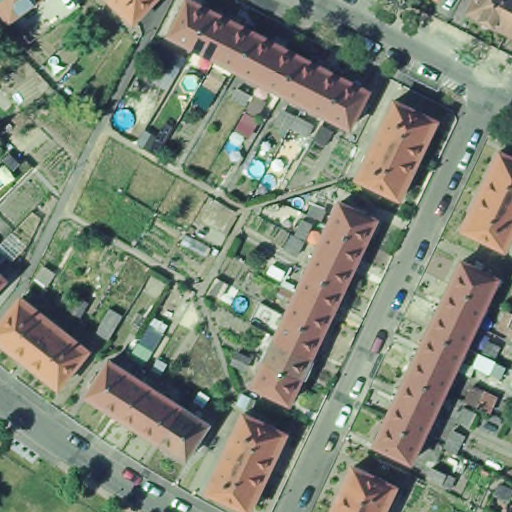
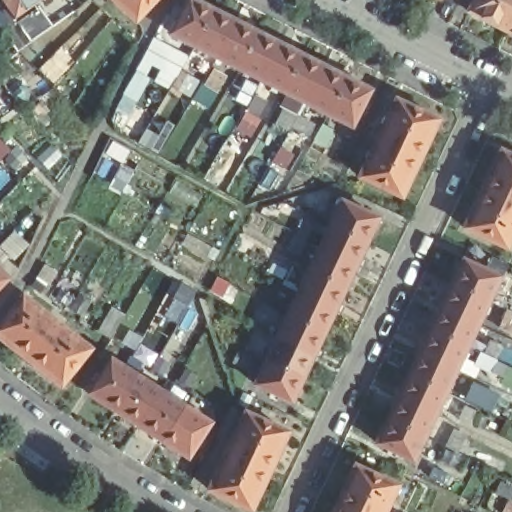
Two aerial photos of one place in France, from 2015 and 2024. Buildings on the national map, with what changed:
unchanged [(0,17),(0,0),(30,0),(2,19),(0,17)]
unchanged [(109,0),(150,0),(131,20),(109,0)]
unchanged [(464,17),(472,0),(512,0),(512,17),(502,36),(464,17)]
unchanged [(166,39),(185,3),(208,15),(191,51),(166,39)]
unchanged [(279,95),(257,84),(234,73),(213,62),(191,51),(208,15),(231,26),(253,37),(275,48),(297,59),(319,70),(301,107),(279,95)]
unchanged [(512,17),(512,42),(502,36),(512,17)]
unchanged [(6,22),(21,42),(7,52),(0,42),(0,27),(6,22)]
unchanged [(319,70),(342,82),(324,118),(301,107),(319,70)]
unchanged [(342,82),(365,93),(347,129),(324,118),(342,82)]
unchanged [(438,118),(402,195),(360,176),(396,98),(438,118)]
unchanged [(512,235),(507,247),(464,227),(501,149),(512,155),(512,235)]
unchanged [(373,218),(362,241),(326,224),(336,201),(373,218)]
unchanged [(326,224),(362,241),(351,264),(314,247),(326,224)]
unchanged [(351,264),(341,286),(304,269),(314,247),(351,264)]
unchanged [(494,281),(484,305),(447,288),(458,264),(494,281)]
unchanged [(304,269),(341,286),(330,309),(294,292),(304,269)]
unchanged [(3,287),(0,290),(0,285),(3,287)]
unchanged [(447,288),(484,305),(473,327),(436,310),(447,288)]
unchanged [(330,309),(319,332),(283,315),(294,292),(330,309)]
unchanged [(89,302),(83,314),(73,308),(79,296),(89,302)]
unchanged [(13,301),(80,353),(52,390),(0,351),(0,318),(13,301)]
unchanged [(124,316),(111,337),(98,329),(111,308),(124,316)]
unchanged [(473,327),(462,350),(425,333),(436,310),(473,327)]
unchanged [(319,332),(309,355),(272,337),(283,315),(319,332)]
unchanged [(425,333),(462,350),(452,373),(414,355),(425,333)]
unchanged [(309,355),(298,378),(261,361),(272,337),(309,355)]
unchanged [(238,351),(256,359),(251,370),(233,362),(238,351)]
unchanged [(495,359),(490,369),(478,364),(483,353),(495,359)]
unchanged [(452,373),(441,396),(404,378),(414,355),(452,373)]
unchanged [(298,378),(287,401),(251,384),(261,361),(298,378)]
unchanged [(84,400),(106,365),(131,381),(110,416),(84,400)]
unchanged [(441,396),(430,419),(393,401),(404,378),(441,396)]
unchanged [(131,381),(156,396),(133,431),(110,416),(131,381)]
unchanged [(133,431),(156,396),(180,411),(158,446),(133,431)]
unchanged [(430,419),(419,441),(383,424),(393,401),(430,419)]
unchanged [(180,411),(205,427),(183,462),(158,446),(180,411)]
unchanged [(288,432),(251,509),(210,490),(246,412),(288,432)]
unchanged [(419,441),(409,465),(371,447),(383,424),(419,441)]
unchanged [(392,484),(379,512),(327,512),(349,464),(392,484)]
unchanged [(512,488),(512,492),(509,499),(496,493),(502,483),(512,488)]

